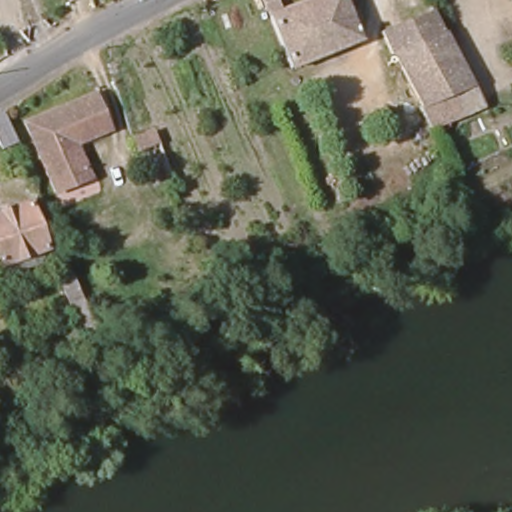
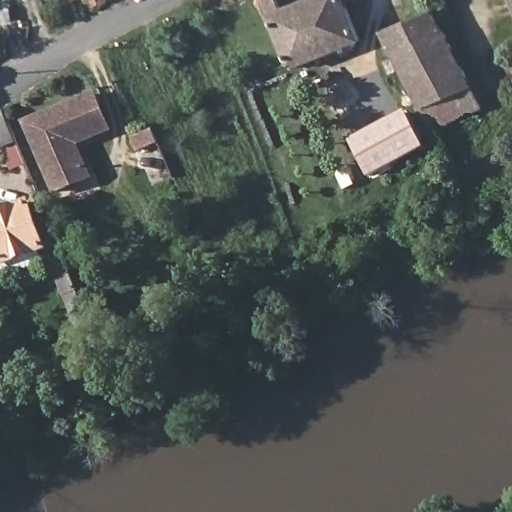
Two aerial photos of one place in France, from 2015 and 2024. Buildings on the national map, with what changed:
unchanged [(287,12),(317,0),(357,0),(359,4),(348,9),(362,41),(294,67),(264,0),(281,0),(287,12)]
unchanged [(380,36),(432,12),(445,35),(395,59),(392,60),(390,56),(385,47),(380,36)]
unchanged [(405,77),(395,59),(445,35),(455,55),(405,77)]
unchanged [(426,114),(405,77),(455,55),(472,89),(450,101),(426,114)]
unchanged [(112,131),(77,146),(92,182),(57,197),(27,127),(97,97),(112,131)]
unchanged [(423,116),(426,114),(450,101),(469,137),(442,150),(423,116)]
unchanged [(190,107),(201,102),(206,112),(195,117),(190,107)]
new [(408,112),(428,149),(370,182),(350,143),(408,112)]
unchanged [(9,120),(20,144),(4,151),(0,143),(0,125),(9,120)]
unchanged [(139,154),(131,137),(151,127),(160,144),(139,154)]
unchanged [(47,251),(5,268),(0,257),(0,218),(29,207),(47,251)]
unchanged [(76,260),(84,277),(76,282),(75,293),(71,295),(66,291),(51,257),(63,251),(68,263),(76,260)]
unchanged [(86,338),(71,302),(83,297),(99,333),(86,338)]

